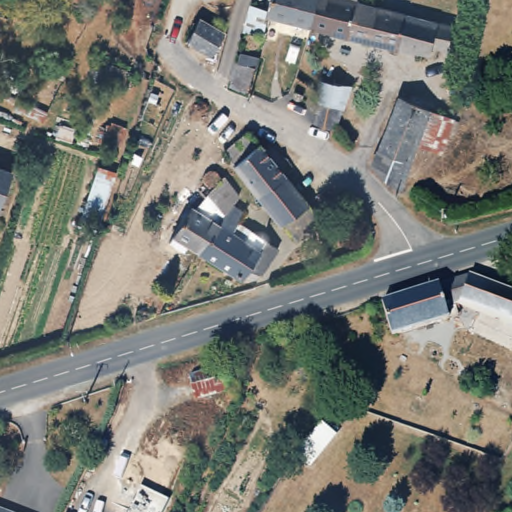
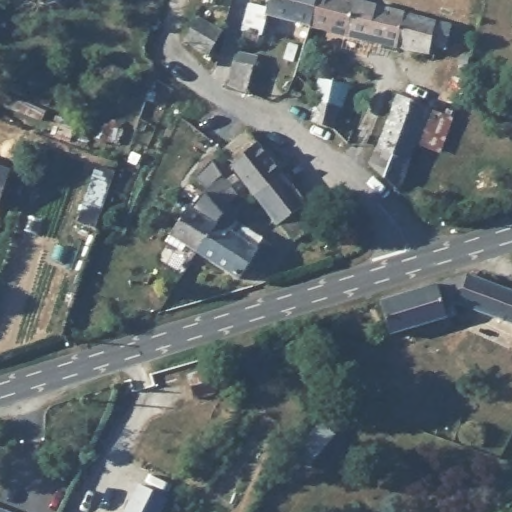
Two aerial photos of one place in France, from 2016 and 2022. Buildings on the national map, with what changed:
unchanged [(267,9),(270,0),(318,0),(312,26),(269,15),(263,36),(262,35),(262,39),(260,42),(258,44),(256,46),(252,48),(249,48),(246,46),(244,44),(242,41),(242,38),(242,35),(245,32),(242,31),(251,4),(267,9)]
unchanged [(357,2),(452,26),(447,50),(432,47),(431,55),(398,49),(312,26),(318,0),(357,0),(357,2)]
unchanged [(224,33),(211,56),(185,41),(197,19),(224,33)]
unchanged [(241,55),(257,59),(255,67),(247,95),(227,89),(235,63),(239,63),(241,55)]
unchanged [(334,129),(312,123),(315,102),(319,87),(321,80),(342,83),(351,85),(343,108),(334,129)]
unchanged [(454,118),(441,151),(417,142),(398,192),(371,166),(400,96),(431,109),(454,118)]
unchanged [(257,196),(233,166),(234,165),(224,152),(224,151),(224,150),(225,150),(247,131),(257,144),(283,176),(257,196)]
unchanged [(16,162),(0,208),(0,157),(16,162)]
unchanged [(116,172),(97,229),(79,223),(98,166),(116,172)]
unchanged [(187,246),(184,253),(169,243),(172,237),(172,236),(189,207),(194,210),(206,196),(205,195),(210,190),(207,189),(205,187),(204,185),(202,182),(202,180),(202,177),(203,175),(205,172),(207,171),(210,170),(212,170),(215,171),(217,172),(219,174),(221,176),(222,178),(224,176),(239,196),(232,204),(224,213),(199,253),(187,246)]
unchanged [(316,216),(320,222),(320,224),(297,242),(295,242),(282,224),(280,226),(257,196),(283,176),(316,216)]
unchanged [(199,253),(224,213),(232,204),(244,212),(237,222),(278,249),(262,275),(247,269),(241,279),(199,253)]
unchanged [(469,271),(492,279),(479,307),(460,299),(454,301),(457,311),(392,331),(381,298),(469,271)]
unchanged [(512,319),(479,307),(492,279),(512,287),(512,319)]
unchanged [(222,368),(227,391),(196,399),(190,376),(222,368)]
unchanged [(336,435),(310,467),(296,455),(322,424),(336,435)]
unchanged [(170,500),(163,512),(125,512),(141,487),(170,500)]
unchanged [(0,512),(0,510),(6,512),(0,512)]

